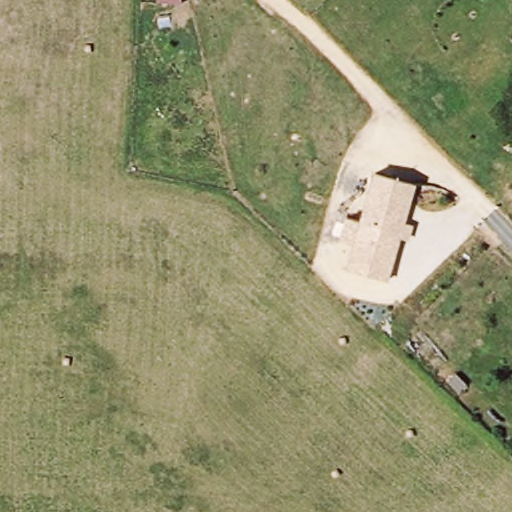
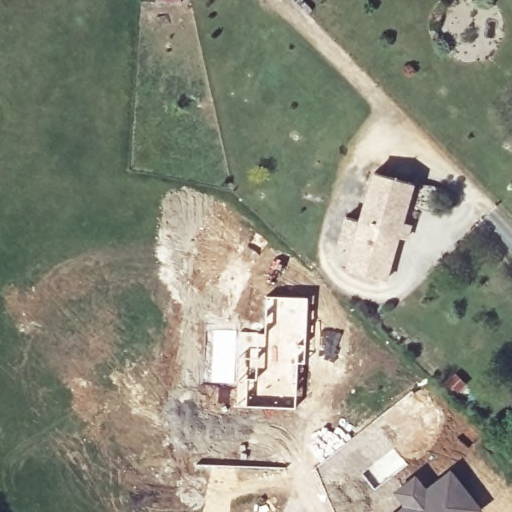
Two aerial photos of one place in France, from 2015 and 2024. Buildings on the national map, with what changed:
unchanged [(156,2),(156,0),(180,0),(180,5),(156,2)]
unchanged [(416,184),(405,221),(413,224),(408,240),(400,238),(388,280),(344,268),(350,248),(335,243),(344,217),(358,221),(372,172),(416,184)]
new [(249,345),(263,344),(264,322),(268,322),(268,315),(270,315),(271,302),(272,302),(272,295),(308,296),(304,362),(299,362),(296,407),(284,406),(284,401),(270,401),(270,403),(245,403),(249,345)]
new [(401,504),(392,491),(415,472),(426,486),(450,467),(482,508),(477,512),(391,512),(401,504)]

